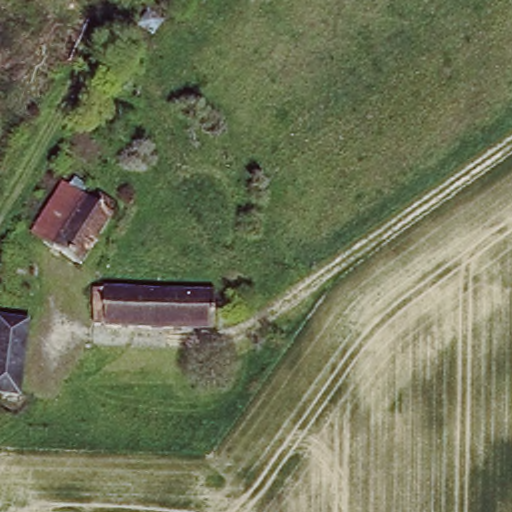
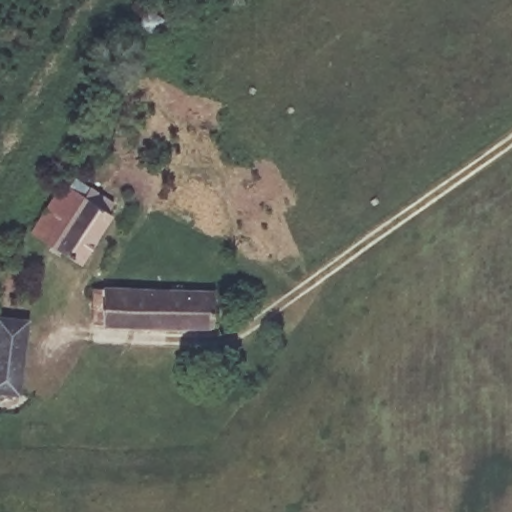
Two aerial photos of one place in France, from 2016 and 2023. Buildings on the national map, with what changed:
unchanged [(103,177),(126,195),(83,263),(56,245),(86,202),(103,177)]
unchanged [(29,229),(57,184),(86,202),(56,245),(29,229)]
unchanged [(212,323),(116,315),(118,282),(215,290),(212,323)]
unchanged [(16,386),(0,385),(0,312),(31,320),(16,386)]

